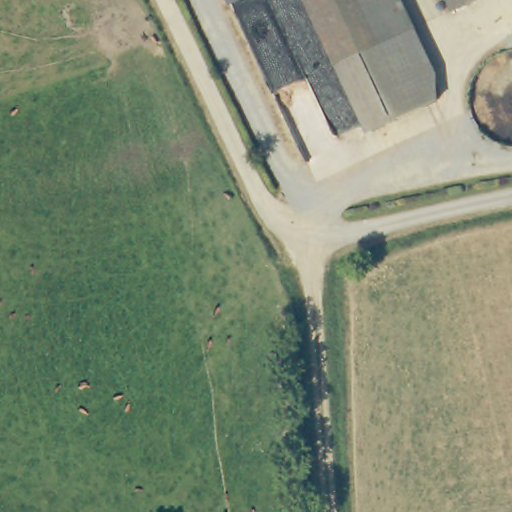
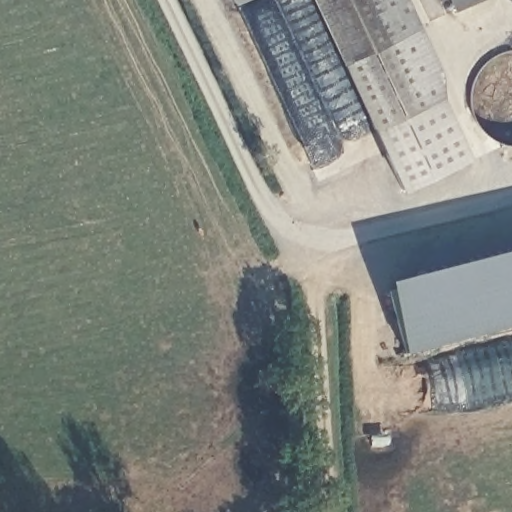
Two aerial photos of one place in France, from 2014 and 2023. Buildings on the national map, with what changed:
unchanged [(241,0),(245,0),(242,2),(241,0)]
unchanged [(379,126),(321,0),(402,0),(446,94),(379,126)]
unchanged [(453,0),(476,0),(457,9),(453,0)]
new [(372,130),(379,126),(441,97),(469,157),(400,191),(372,130)]
new [(512,327),(404,356),(385,287),(512,253),(512,327)]

